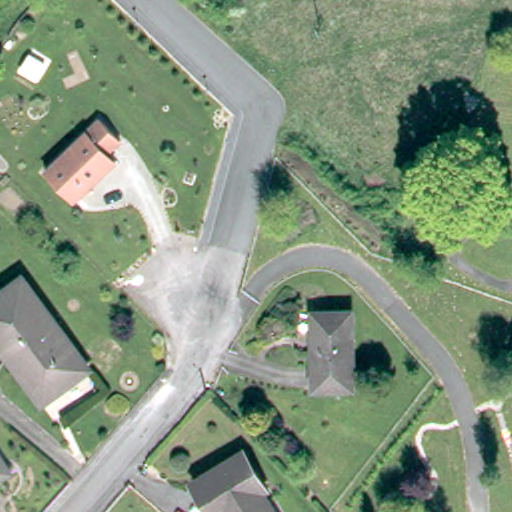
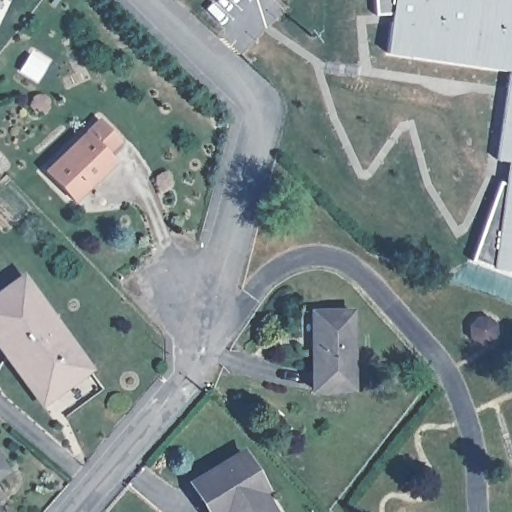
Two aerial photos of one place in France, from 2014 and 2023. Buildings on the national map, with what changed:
new [(472,261),(500,183),(505,184),(509,162),(496,160),(510,71),(387,53),(393,13),(375,15),(374,0),(512,0),(512,277),(472,261)]
unchanged [(119,161),(79,201),(49,171),(102,119),(124,140),(111,153),(119,161)]
unchanged [(0,334),(0,296),(27,276),(88,368),(42,398),(0,334)]
unchanged [(320,383),(316,309),(351,308),(355,382),(320,383)]
unchanged [(225,509),(220,512),(215,512),(195,479),(245,448),(267,484),(260,489),(274,512),(226,512),(225,509)]
unchanged [(0,465),(4,471),(0,473),(0,465)]

